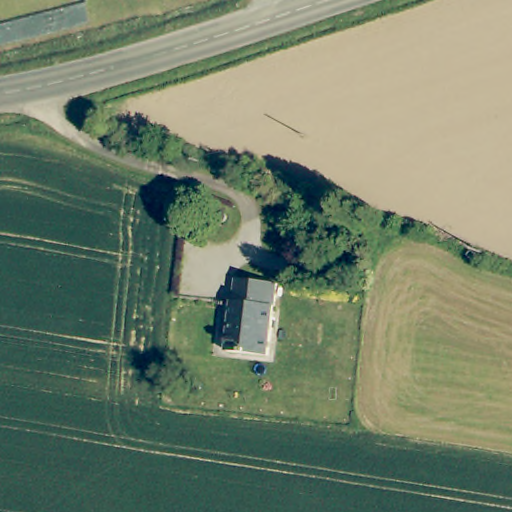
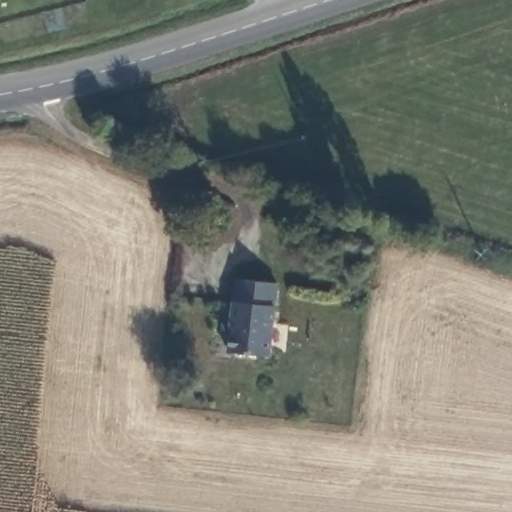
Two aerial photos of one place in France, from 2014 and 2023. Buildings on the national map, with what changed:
unchanged [(231,280),(273,282),(275,312),(231,315),(231,280)]
unchanged [(275,312),(273,353),(229,350),(231,315),(275,312)]

